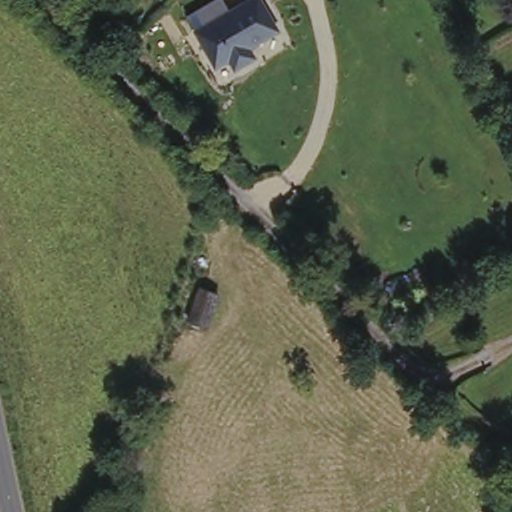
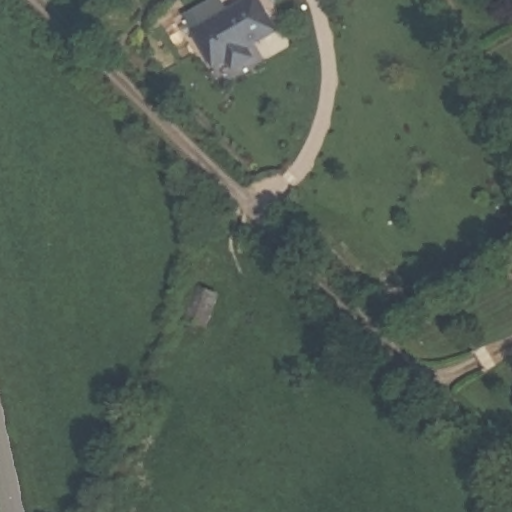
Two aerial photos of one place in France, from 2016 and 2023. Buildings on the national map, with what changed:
unchanged [(187,20),(215,0),(224,0),(230,10),(247,0),(262,0),(280,32),(250,50),(256,60),(233,72),(229,62),(215,70),(187,20)]
unchanged [(218,294),(208,326),(189,320),(200,287),(218,294)]

